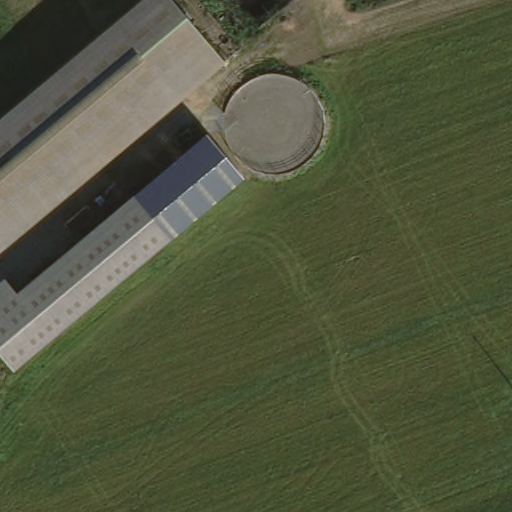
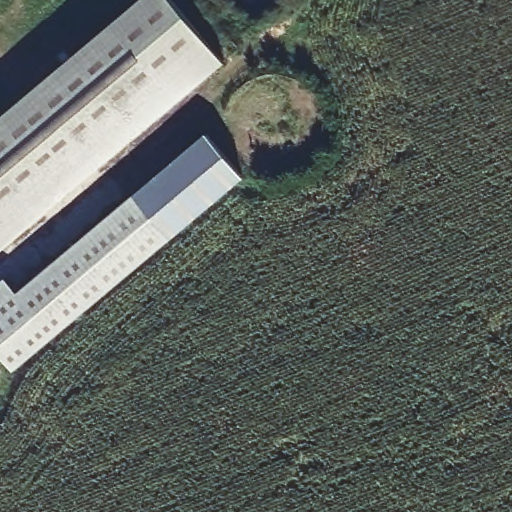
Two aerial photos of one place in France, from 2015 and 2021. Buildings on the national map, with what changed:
unchanged [(21,101),(24,100),(58,69),(136,0),(166,0),(188,26),(225,75),(0,258),(0,119),(21,101)]
unchanged [(206,132),(242,175),(162,240),(126,198),(206,132)]
unchanged [(4,281),(16,295),(126,198),(162,240),(16,368),(0,350),(0,284),(4,281)]

